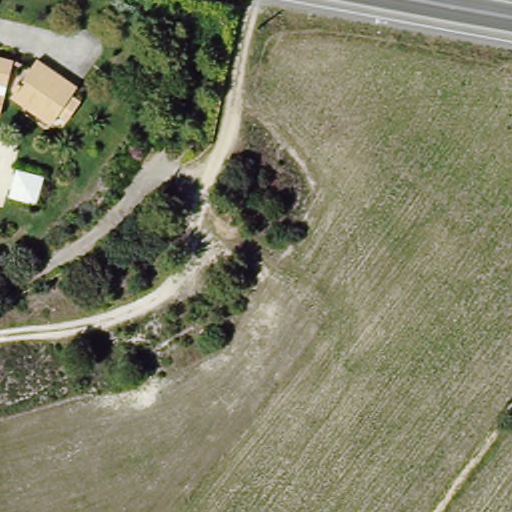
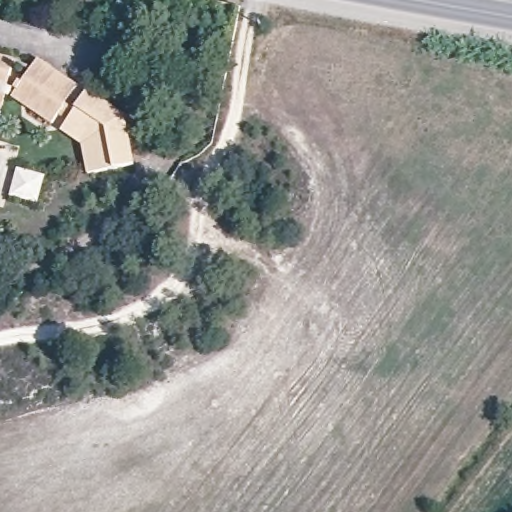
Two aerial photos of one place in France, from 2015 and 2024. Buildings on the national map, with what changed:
unchanged [(12,59),(6,82),(0,81),(0,56),(12,59)]
unchanged [(20,85),(40,57),(76,82),(53,122),(27,105),(13,95),(20,85)]
new [(88,92),(124,116),(132,164),(112,169),(87,172),(83,145),(74,152),(56,135),(65,127),(67,123),(56,116),(76,82),(88,92)]
unchanged [(3,95),(0,104),(0,94),(3,95)]
new [(13,170),(45,178),(39,202),(7,194),(13,170)]

